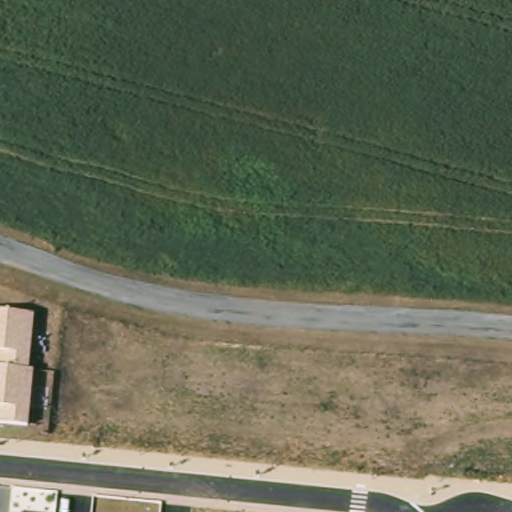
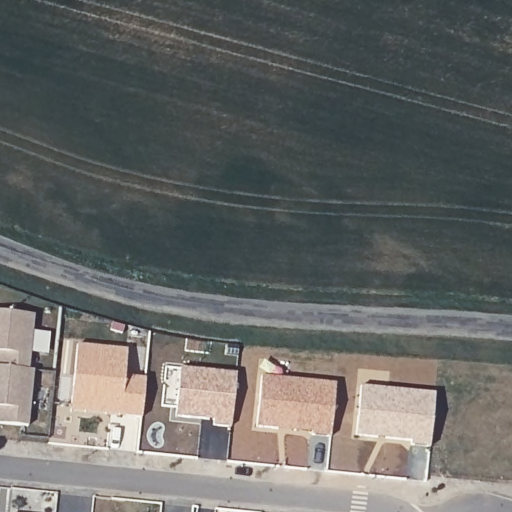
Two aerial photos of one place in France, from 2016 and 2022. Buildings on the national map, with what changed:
unchanged [(0,425),(0,314),(32,317),(27,370),(33,370),(29,428),(0,425)]
new [(77,344),(127,350),(126,376),(146,378),(142,416),(72,410),(77,344)]
new [(231,424),(214,423),(215,418),(176,413),(179,387),(181,365),(196,367),(237,371),(231,424)]
new [(278,427),(257,425),(262,374),(336,382),(331,434),(312,433),(312,430),(278,426),(278,427)]
new [(361,384),(435,392),(430,445),(411,443),(411,439),(385,437),(386,433),(378,432),(377,436),(356,434),(361,384)]

